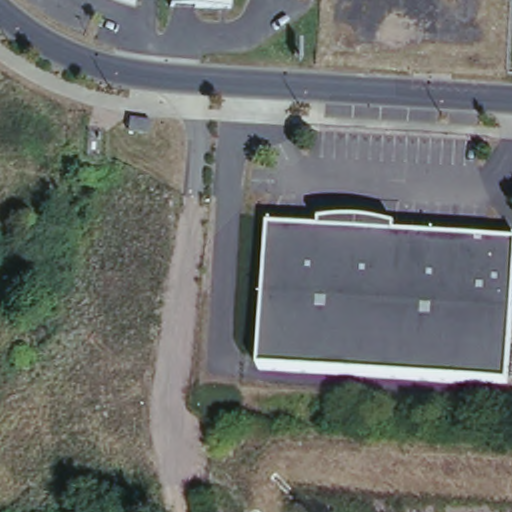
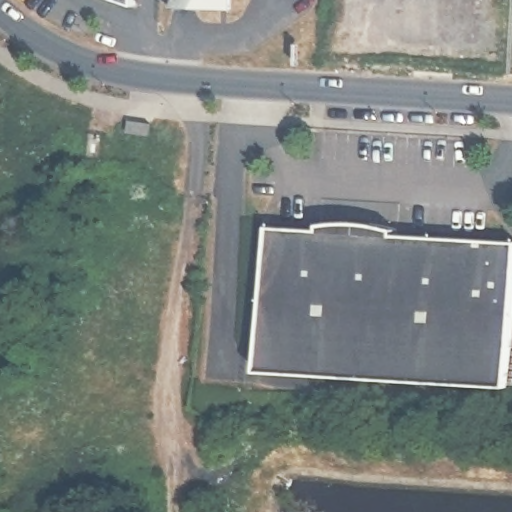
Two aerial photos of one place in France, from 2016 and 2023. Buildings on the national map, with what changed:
unchanged [(135,2),(129,0),(136,0),(135,2)]
unchanged [(173,0),(230,0),(230,5),(172,1),(173,0)]
unchanged [(140,121),(161,124),(159,135),(138,131),(140,121)]
unchanged [(318,222),(340,222),(361,221),(378,224),(394,228),(394,233),(512,239),(512,324),(508,383),(259,371),(268,225),(318,227),(318,222)]

